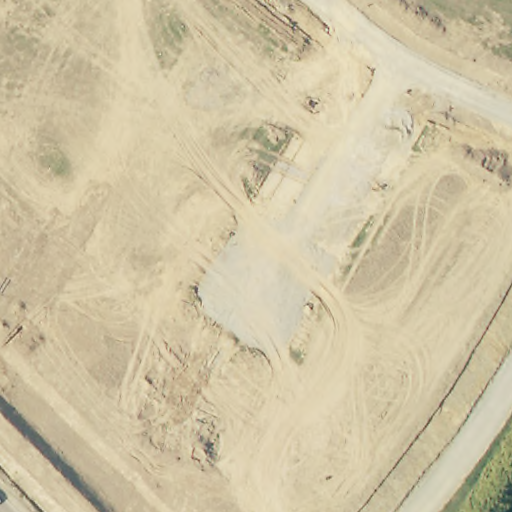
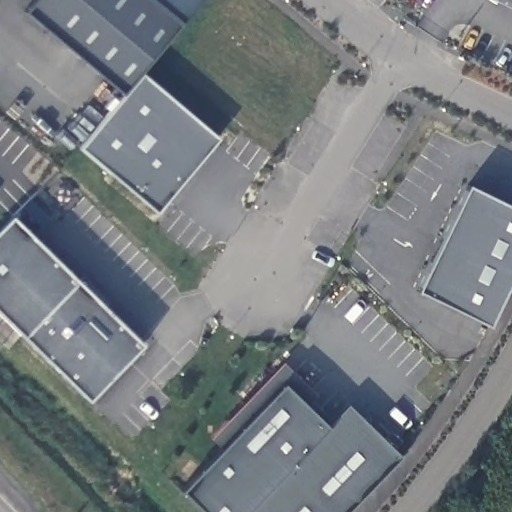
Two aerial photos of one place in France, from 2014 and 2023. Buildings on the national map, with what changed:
new [(27,12),(37,0),(150,0),(180,26),(140,72),(218,139),(156,212),(79,147),(125,92),(27,12)]
new [(150,0),(202,0),(180,26),(150,0)]
new [(512,206),(512,279),(489,326),(418,290),(469,186),(512,206)]
new [(87,402),(0,315),(0,229),(12,217),(142,345),(87,402)]
unchanged [(349,406),(403,459),(351,512),(202,512),(181,492),(223,449),(212,437),(285,365),(318,397),(309,410),(329,428),(349,406)]

